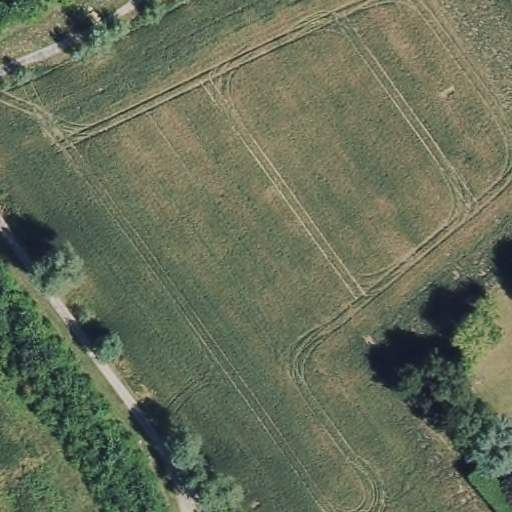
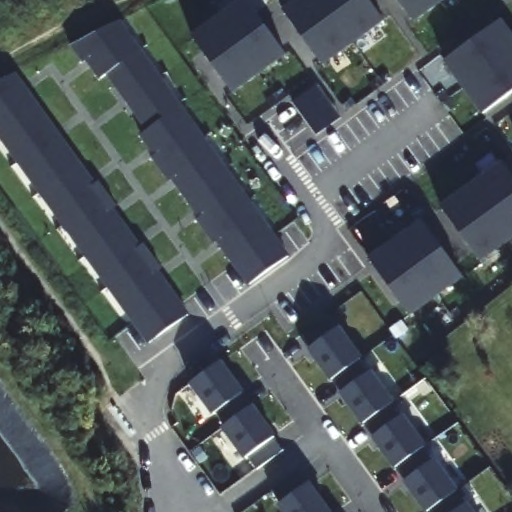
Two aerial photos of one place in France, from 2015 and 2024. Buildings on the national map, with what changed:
new [(245,0),(284,54),(231,93),(188,33),(234,0),(245,0)]
new [(368,0),(384,21),(322,66),(279,7),(290,0),(368,0)]
new [(396,0),(442,0),(412,21),(396,0)]
new [(118,19),(289,255),(248,285),(216,242),(213,244),(195,218),(198,216),(139,135),(146,131),(103,74),(99,76),(94,71),(91,74),(81,60),(78,59),(67,46),(118,19)]
new [(499,19),(512,37),(512,91),(479,114),(441,60),(499,19)]
new [(0,143),(0,80),(14,74),(90,178),(93,176),(119,212),(118,214),(138,242),(140,241),(159,267),(158,269),(188,312),(148,343),(0,143)]
new [(499,160),(512,177),(512,237),(479,262),(438,204),(499,160)]
new [(420,218),(463,276),(409,314),(367,257),(420,218)]
new [(336,326),(361,358),(331,381),(306,349),(336,326)]
new [(221,361),(241,392),(211,414),(189,384),(221,361)]
new [(361,423),(339,394),(371,371),(392,400),(361,423)]
new [(248,404),(274,437),(273,439),(282,450),(256,470),(248,459),(246,460),(219,426),(248,404)]
new [(402,414),(424,445),(393,468),(371,437),(402,414)]
new [(433,457),(457,490),(427,511),(403,479),(433,457)]
new [(327,512),(281,512),(274,504),(304,481),(327,512)]
new [(466,504),(472,512),(454,512),(466,504)]

